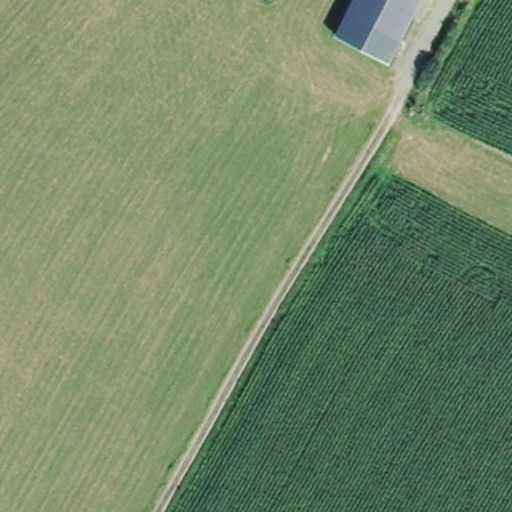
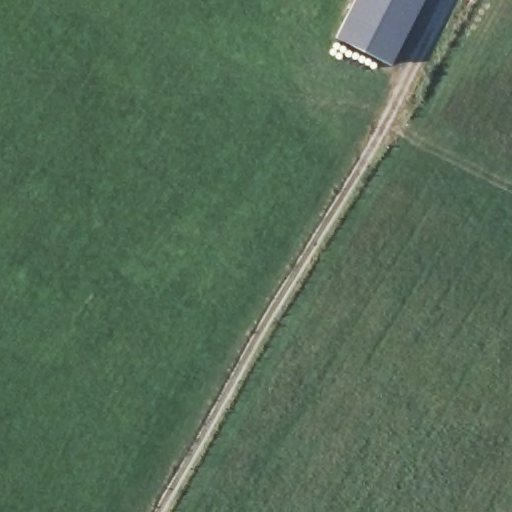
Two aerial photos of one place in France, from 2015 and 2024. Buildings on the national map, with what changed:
unchanged [(340,31),(358,0),(429,0),(393,60),(340,31)]

